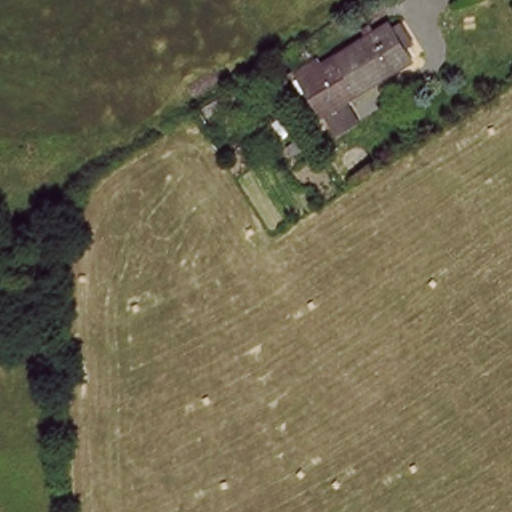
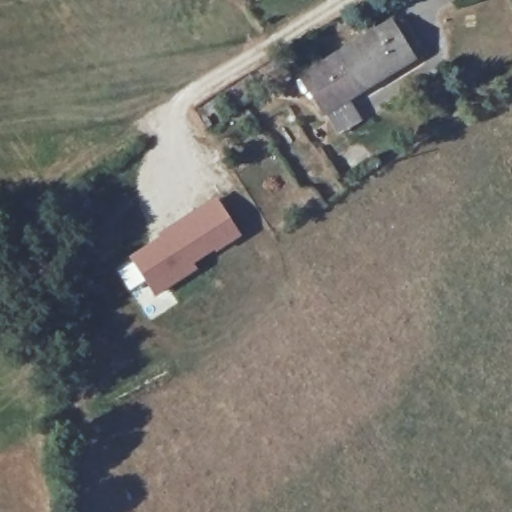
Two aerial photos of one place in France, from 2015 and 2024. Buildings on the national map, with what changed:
unchanged [(421,64),(354,106),(367,127),(343,141),(301,72),(393,22),(421,64)]
unchanged [(270,90),(262,77),(279,67),(287,80),(270,90)]
unchanged [(223,112),(221,109),(205,120),(199,111),(249,80),(255,91),(223,112)]
new [(130,258),(160,239),(158,236),(217,198),(242,237),(217,254),(216,252),(195,265),(199,272),(156,298),(130,258)]

